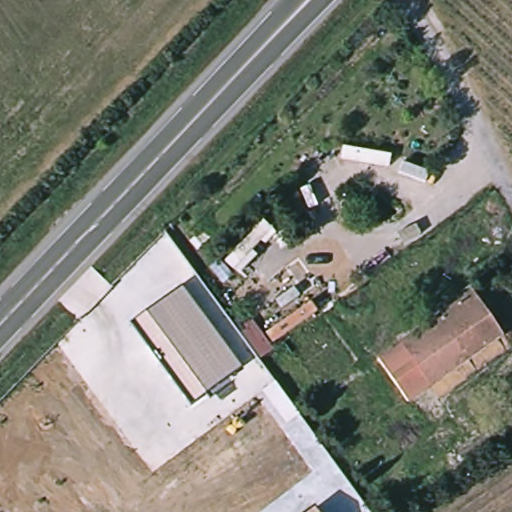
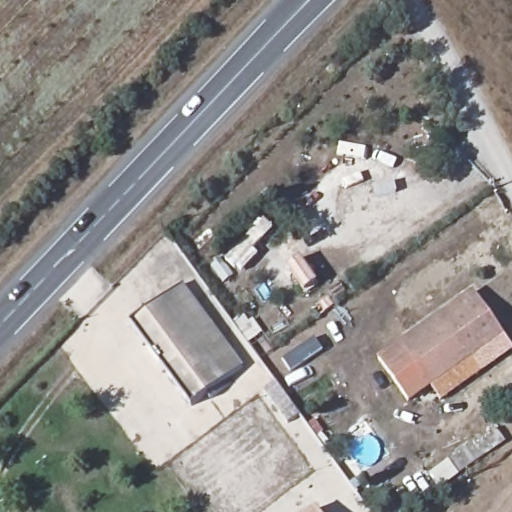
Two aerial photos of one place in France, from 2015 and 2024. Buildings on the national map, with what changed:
unchanged [(128,317),(183,279),(244,361),(190,402),(128,317)]
unchanged [(418,392),(389,346),(463,296),(493,340),(418,392)]
unchanged [(450,478),(439,466),(485,432),(494,445),(450,478)]
unchanged [(315,504),(320,512),(304,512),(315,504)]

